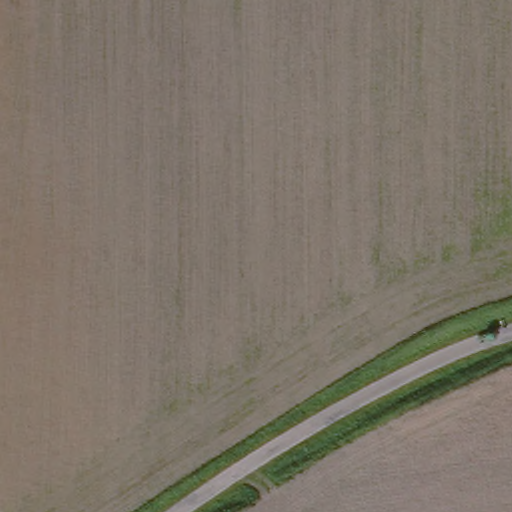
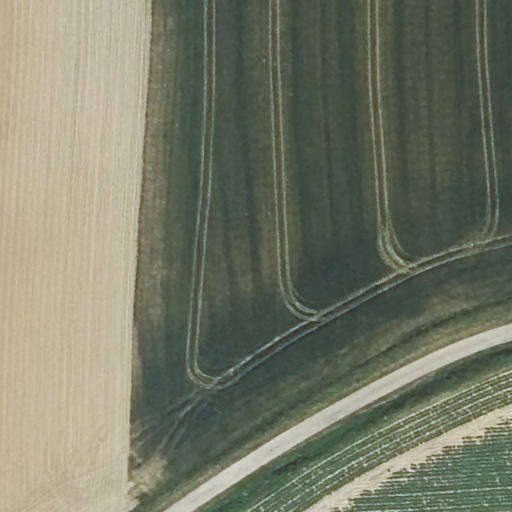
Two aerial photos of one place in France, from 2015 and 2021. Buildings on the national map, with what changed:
[]

